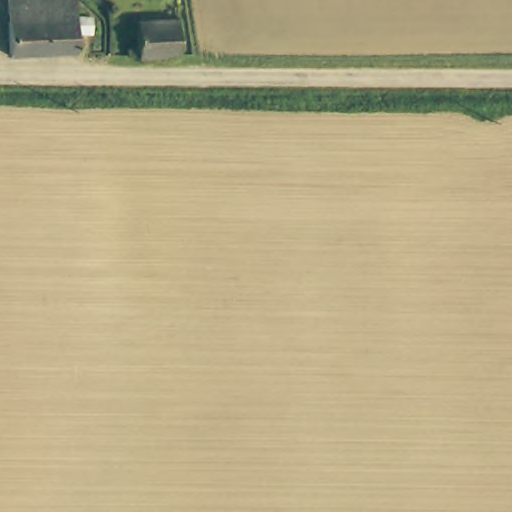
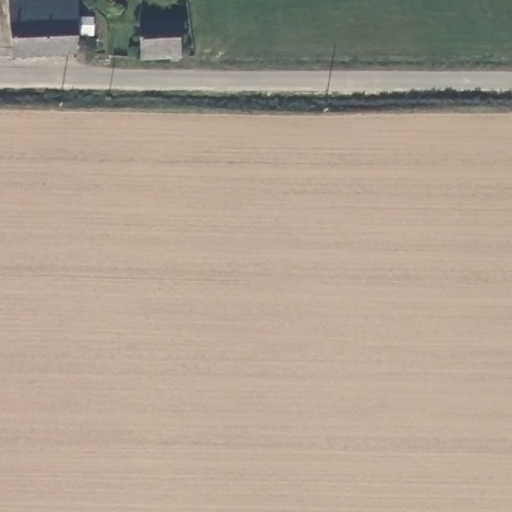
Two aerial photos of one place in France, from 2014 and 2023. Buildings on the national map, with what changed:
unchanged [(79,0),(79,59),(14,58),(15,0),(79,0)]
unchanged [(140,18),(179,18),(178,55),(140,55),(140,18)]

